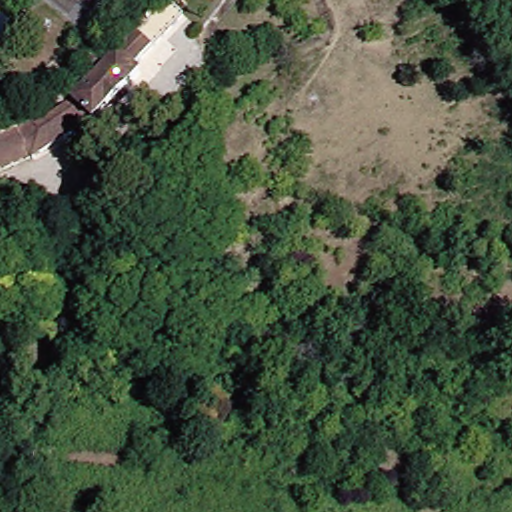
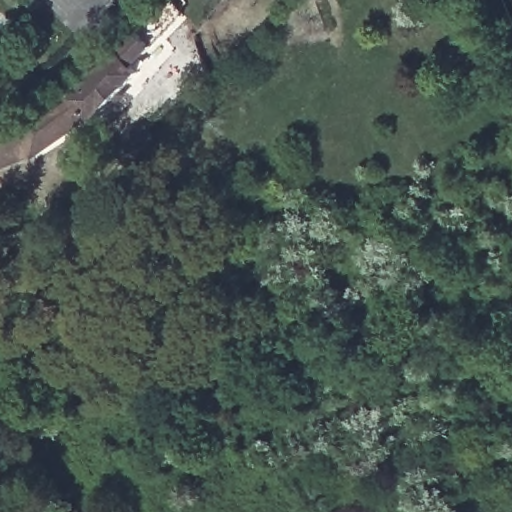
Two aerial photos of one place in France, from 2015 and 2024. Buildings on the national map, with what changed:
unchanged [(32,116),(66,97),(112,50),(128,31),(147,0),(159,0),(172,16),(143,49),(128,68),(131,71),(88,120),(32,155),(0,166),(0,128),(32,116)]

